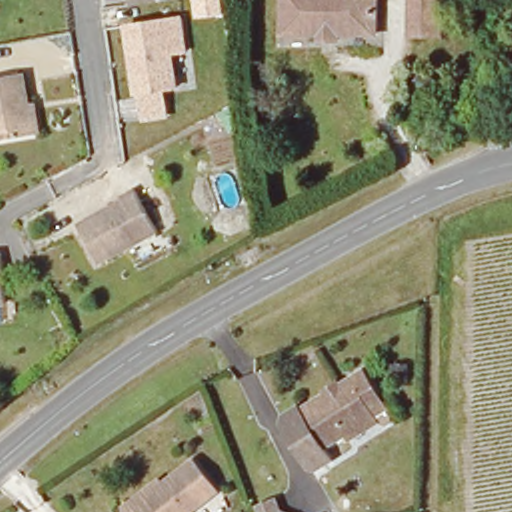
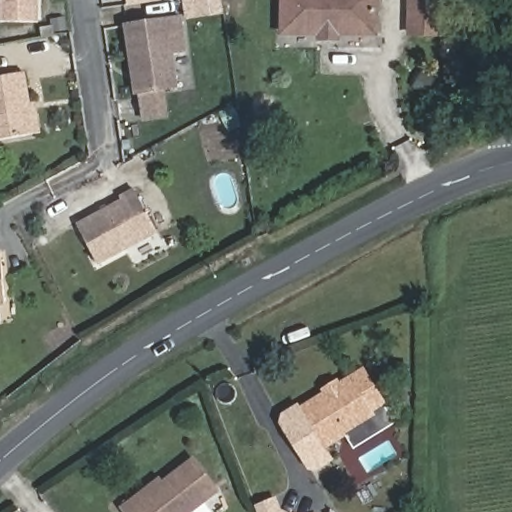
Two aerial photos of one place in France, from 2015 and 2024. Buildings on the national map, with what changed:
new [(39,21),(0,21),(0,0),(39,0),(39,21)]
unchanged [(162,2),(132,10),(130,0),(162,0),(162,2)]
unchanged [(370,32),(329,30),(326,42),(302,40),(304,27),(279,26),(281,0),(372,0),(370,32)]
unchanged [(411,0),(444,0),(442,30),(410,31),(411,0)]
unchanged [(190,54),(178,56),(183,89),(168,91),(172,120),(144,124),(129,24),(185,15),(190,54)]
unchanged [(0,139),(0,80),(25,75),(33,119),(35,135),(2,139),(0,139)]
unchanged [(163,234),(104,265),(82,224),(124,202),(121,198),(139,191),(163,234)]
unchanged [(9,263),(9,315),(0,315),(0,261),(9,263)]
unchanged [(389,413),(322,445),(329,460),(314,467),(307,465),(286,418),(288,412),(304,405),(305,407),(372,376),(389,413)]
unchanged [(139,501),(196,457),(216,488),(189,512),(130,512),(129,510),(139,501)]
unchanged [(279,499),(286,512),(260,512),(258,508),(279,499)]

